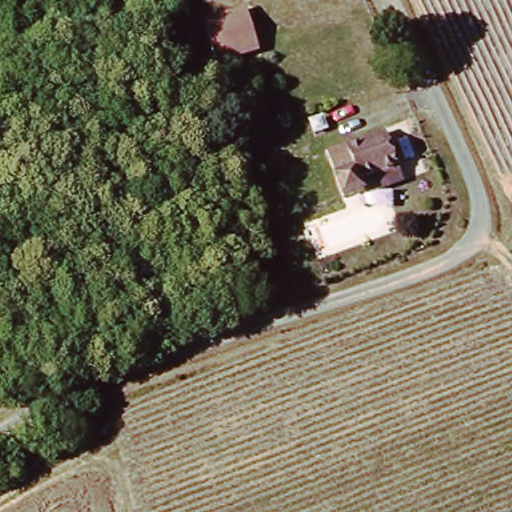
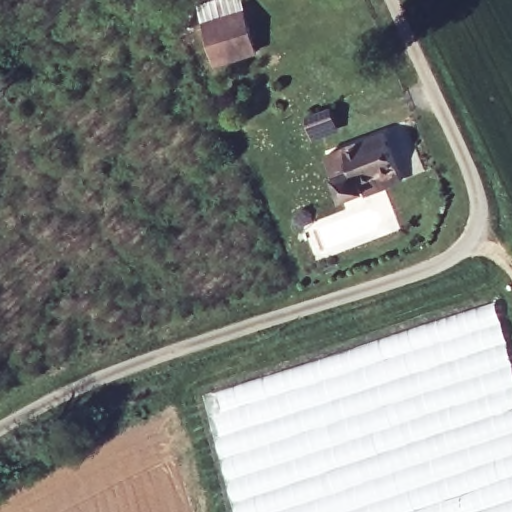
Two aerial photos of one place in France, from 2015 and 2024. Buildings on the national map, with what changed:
unchanged [(251,6),(268,45),(229,62),(212,23),(251,6)]
unchanged [(364,191),(341,201),(322,156),(382,130),(398,166),(403,180),(367,196),(364,191)]
new [(512,361),(512,512),(231,512),(228,502),(211,424),(202,395),(494,303),(512,361)]

